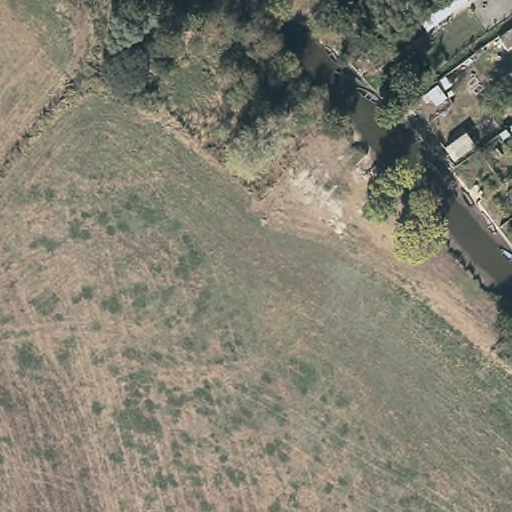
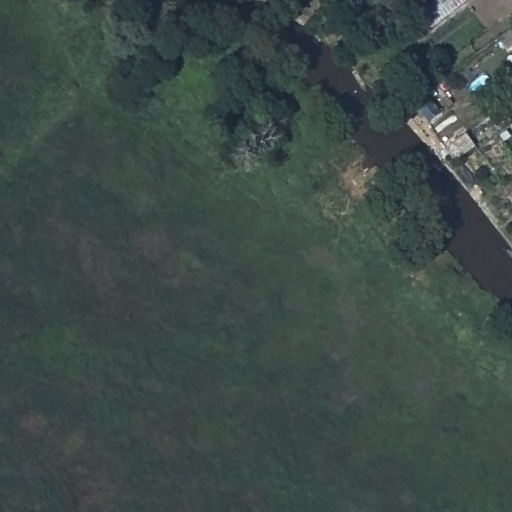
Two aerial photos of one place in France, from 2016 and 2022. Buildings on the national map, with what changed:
unchanged [(512,43),(512,54),(506,47),(512,43)]

